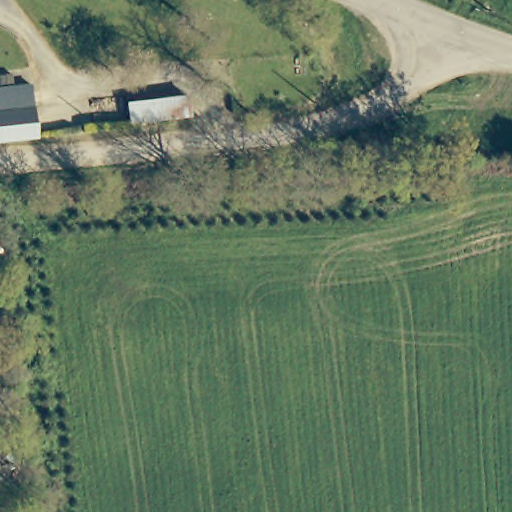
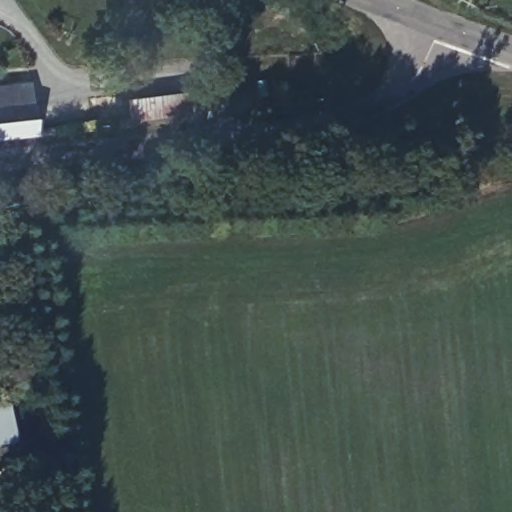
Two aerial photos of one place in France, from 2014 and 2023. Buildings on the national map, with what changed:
unchanged [(31,117),(33,141),(0,144),(0,90),(28,86),(31,117)]
unchanged [(186,99),(189,120),(130,126),(128,106),(186,99)]
new [(17,444),(0,447),(0,404),(9,402),(17,444)]

